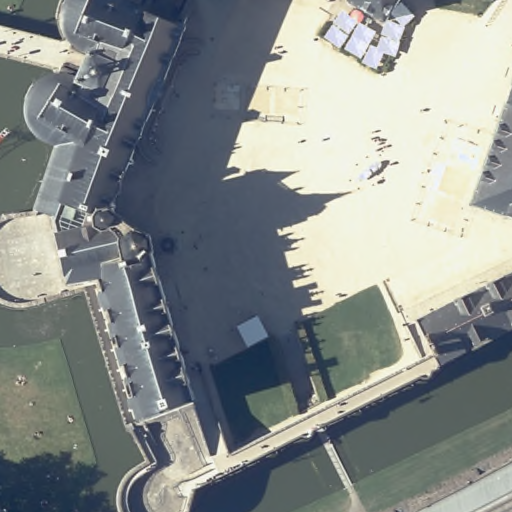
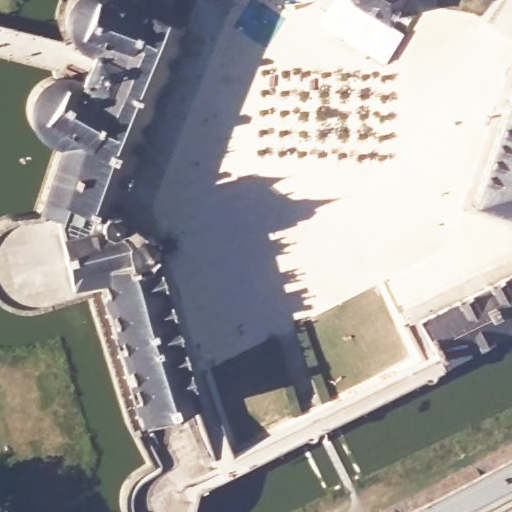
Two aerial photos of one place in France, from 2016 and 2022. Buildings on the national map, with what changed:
unchanged [(41,92),(49,85),(61,80),(75,80),(86,83),(99,53),(94,52),(84,47),(75,39),(73,34),(70,26),(69,16),(73,5),(77,0),(151,0),(149,5),(139,29),(177,43),(180,35),(185,37),(115,212),(127,222),(130,234),(134,235),(140,234),(139,231),(142,230),(143,234),(151,237),(155,236),(156,240),(154,240),(158,252),(159,252),(159,255),(156,255),(199,401),(143,428),(137,431),(135,427),(94,295),(61,302),(71,265),(66,237),(43,211),(64,146),(53,140),(44,134),(37,122),(35,110),(38,99),(41,92)]
unchanged [(391,22),(352,0),(404,0),(391,22)]
unchanged [(480,207),(512,105),(512,218),(480,207)]
unchanged [(19,214),(43,211),(66,237),(71,265),(61,302),(38,308),(25,308),(13,305),(1,300),(0,298),(0,222),(8,217),(19,214)]
unchanged [(512,281),(512,333),(455,361),(444,366),(439,355),(425,323),(512,281)]
unchanged [(199,401),(215,456),(234,451),(236,455),(439,355),(444,366),(204,490),(154,467),(137,431),(143,428),(199,401)]
unchanged [(136,480),(142,474),(149,470),(154,467),(204,490),(199,510),(198,512),(131,512),(129,505),(130,495),(133,488),(136,480)]

